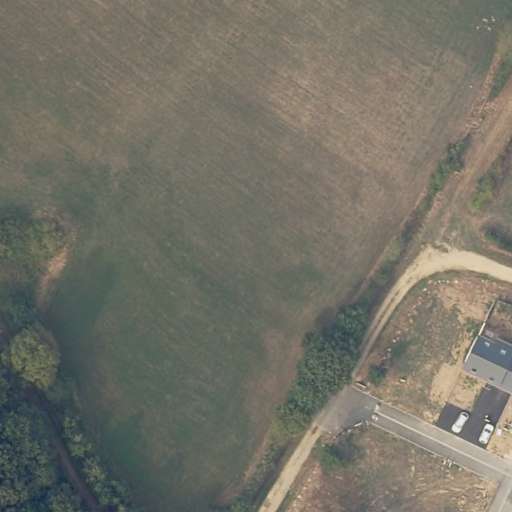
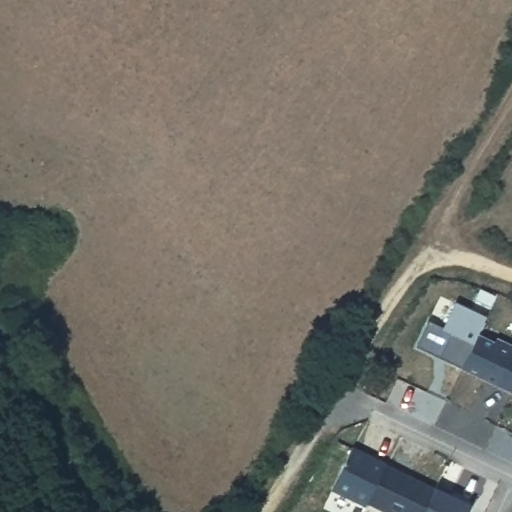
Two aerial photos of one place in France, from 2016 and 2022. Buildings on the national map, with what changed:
new [(416,347),(430,322),(443,330),(455,302),(487,317),(479,334),(482,336),(466,370),(416,347)]
unchanged [(466,370),(482,336),(495,342),(498,339),(512,344),(512,392),(466,370)]
new [(357,451),(391,467),(372,506),(371,508),(337,492),(357,451)]
new [(391,467),(440,491),(430,512),(384,512),(372,506),(391,467)]
new [(440,491),(441,488),(457,496),(455,499),(475,509),(474,512),(430,512),(440,491)]

